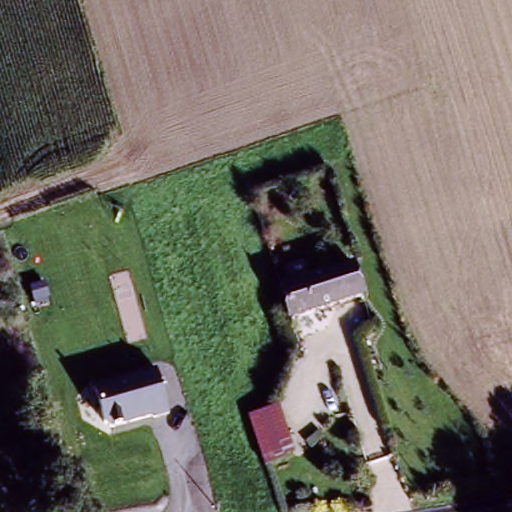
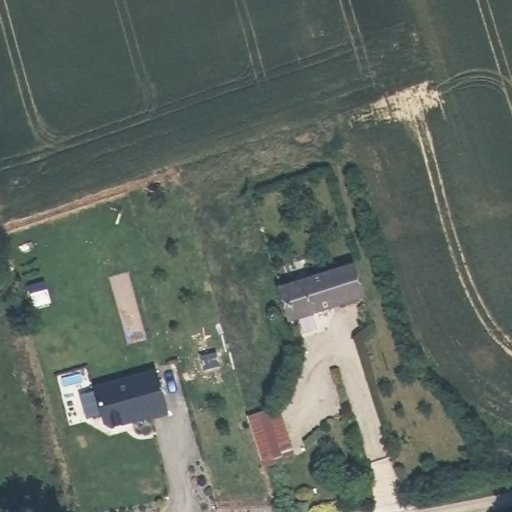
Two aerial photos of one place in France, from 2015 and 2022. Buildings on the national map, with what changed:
unchanged [(342,268),(350,295),(366,290),(369,300),(291,324),(280,288),(342,268)]
unchanged [(157,372),(170,413),(105,430),(91,389),(157,372)]
unchanged [(254,425),(282,416),(298,466),(269,475),(254,425)]

